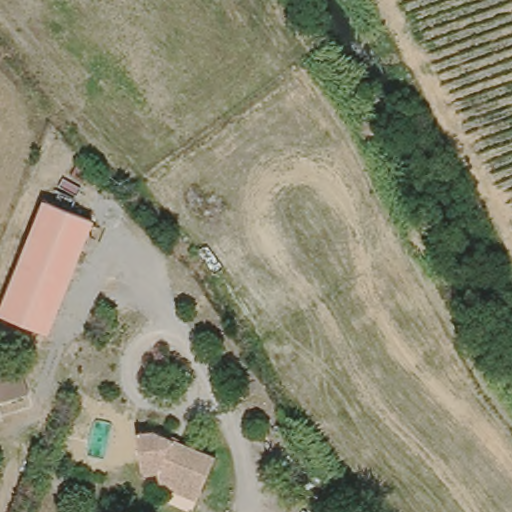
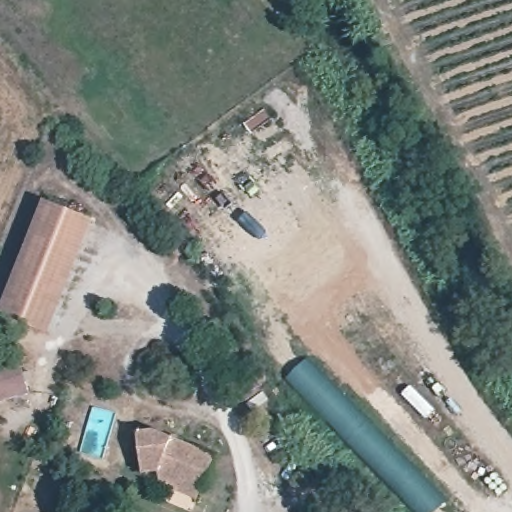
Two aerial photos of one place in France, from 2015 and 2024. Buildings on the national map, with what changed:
unchanged [(45,197),(98,221),(53,331),(2,309),(45,197)]
unchanged [(30,398),(0,406),(0,362),(19,357),(30,398)]
new [(446,501),(434,512),(406,512),(286,381),(310,357),(446,501)]
unchanged [(156,480),(160,471),(147,474),(138,435),(154,431),(216,457),(203,488),(198,498),(156,480)]

